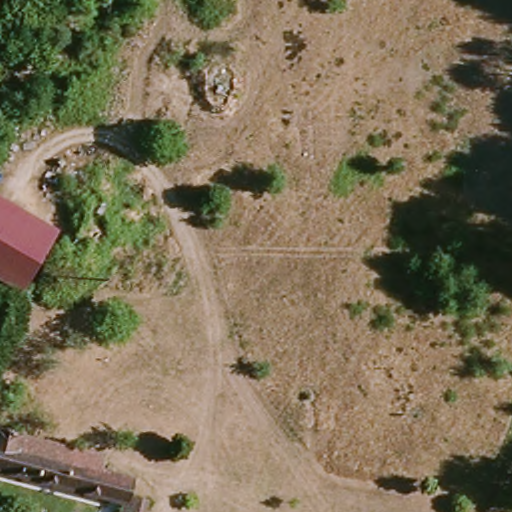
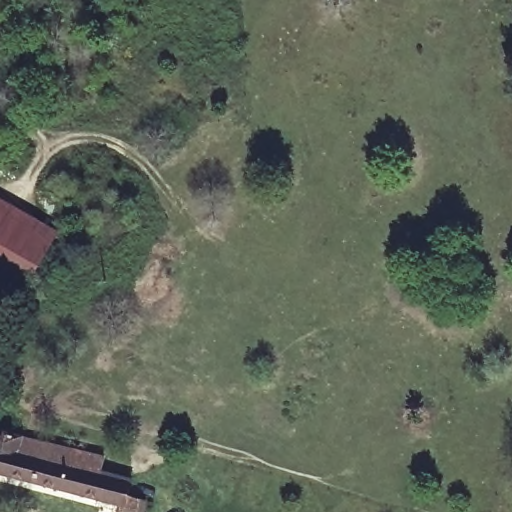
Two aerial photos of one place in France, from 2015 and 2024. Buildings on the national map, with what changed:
unchanged [(23,289),(0,277),(0,198),(59,230),(23,289)]
unchanged [(103,471),(134,480),(131,498),(151,503),(148,512),(120,512),(121,508),(0,478),(0,429),(108,456),(103,471)]

